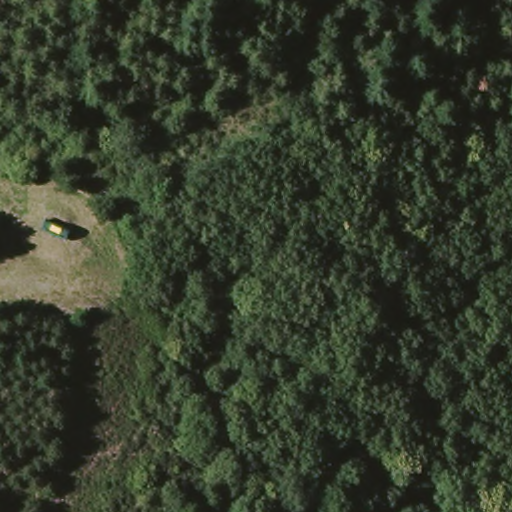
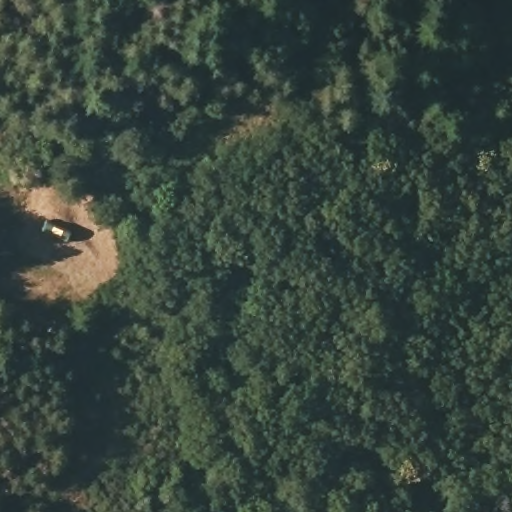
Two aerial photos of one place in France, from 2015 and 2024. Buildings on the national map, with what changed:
unchanged [(40,234),(49,217),(76,230),(67,243),(40,234)]

